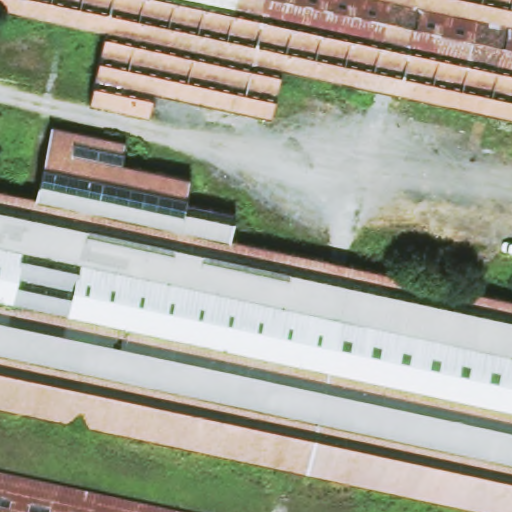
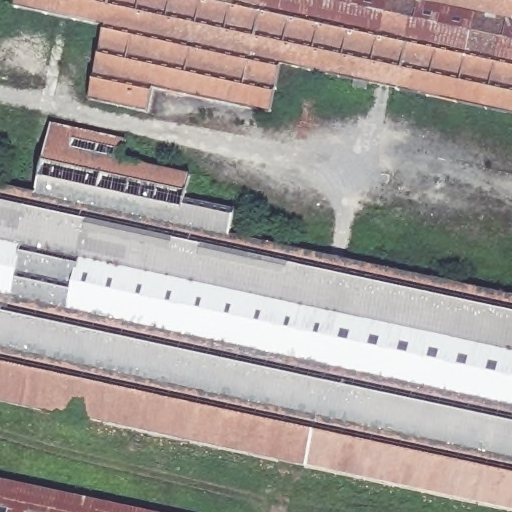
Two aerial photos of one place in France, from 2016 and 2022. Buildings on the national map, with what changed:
unchanged [(512,118),(282,70),(272,114),(158,90),(153,115),(90,102),(106,30),(0,7),(0,0),(512,0),(512,118)]
unchanged [(124,143),(120,161),(196,178),(190,203),(238,213),(232,238),(512,299),(512,512),(497,512),(0,404),(0,187),(37,195),(52,127),(93,136),(124,143)]
unchanged [(0,512),(0,481),(142,512),(0,512)]

